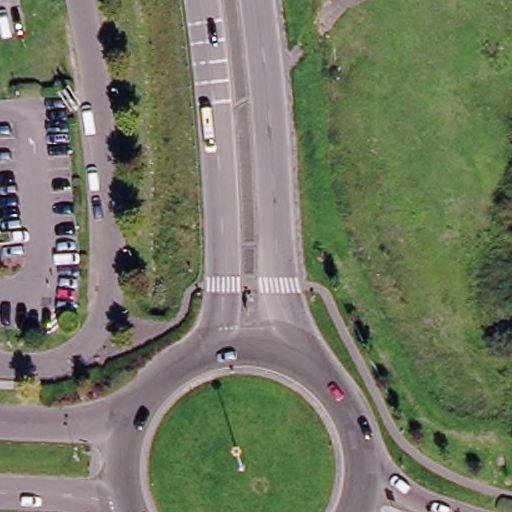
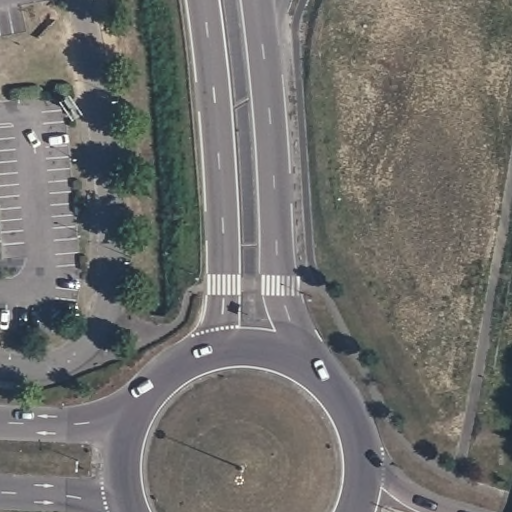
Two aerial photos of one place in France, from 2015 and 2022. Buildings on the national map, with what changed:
[]

